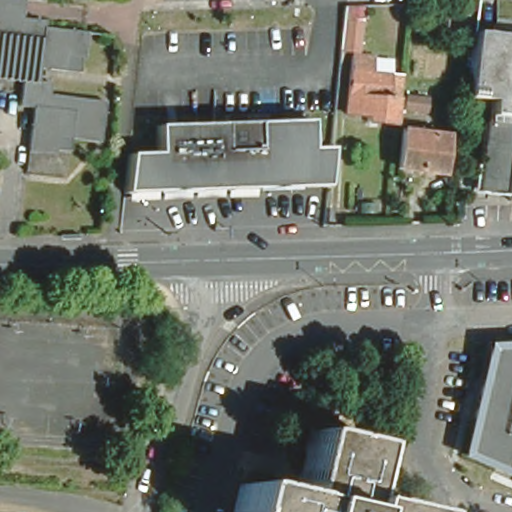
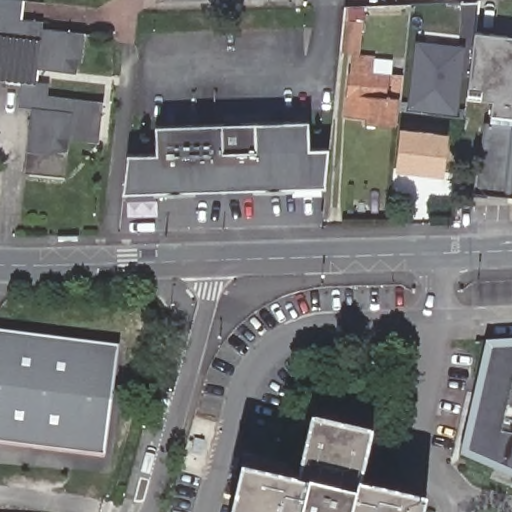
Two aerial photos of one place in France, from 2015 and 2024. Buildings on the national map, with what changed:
unchanged [(19,7),(16,28),(40,30),(39,38),(80,43),(75,82),(35,78),(33,90),(47,91),(46,104),(102,110),(98,151),(67,147),(66,162),(26,156),(30,112),(17,110),(21,84),(0,81),(0,5),(19,7)]
unchanged [(508,203),(470,199),(472,175),(475,175),(481,129),(485,129),(486,118),(487,106),(463,104),(470,37),(512,41),(512,206),(508,206),(508,203)]
new [(456,115),(407,110),(415,41),(465,46),(456,115)]
unchanged [(350,50),(358,51),(358,53),(371,55),(370,73),(385,74),(383,95),(395,97),(392,126),(364,123),(364,118),(343,116),(350,50)]
demolished [(423,98),(421,113),(400,111),(403,96),(423,98)]
unchanged [(221,124),(307,120),(308,147),(328,146),(325,181),(220,186),(121,190),(124,165),(125,155),(154,154),(153,127),(221,124)]
unchanged [(442,136),(438,175),(395,170),(400,131),(442,136)]
new [(0,444),(0,332),(119,348),(105,457),(0,444)]
unchanged [(512,473),(463,451),(487,345),(512,343),(512,473)]
unchanged [(230,512),(236,486),(290,498),(306,429),(368,444),(356,498),(387,505),(387,512),(230,512)]
unchanged [(387,512),(387,505),(420,512),(387,512)]

